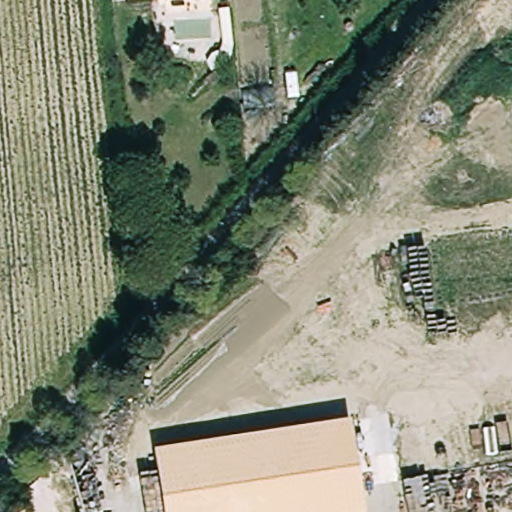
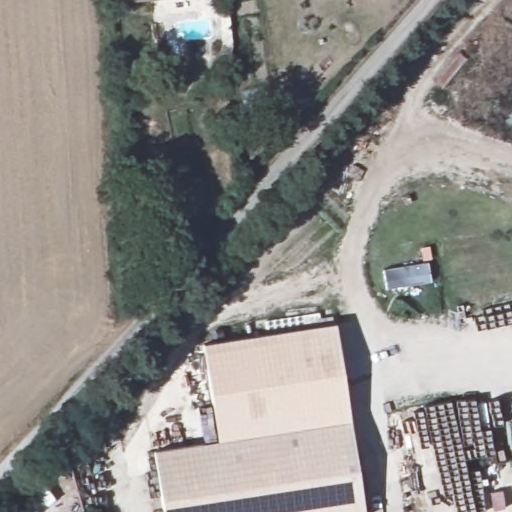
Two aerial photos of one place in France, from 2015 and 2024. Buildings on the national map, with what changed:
unchanged [(169,2),(128,7),(127,0),(168,0),(169,2)]
unchanged [(169,2),(168,0),(180,0),(169,2)]
new [(334,325),(349,422),(218,442),(203,345),(334,325)]
unchanged [(349,422),(365,512),(163,512),(153,452),(349,422)]

